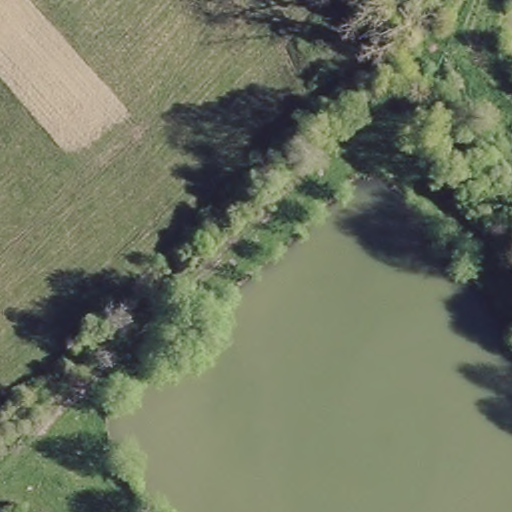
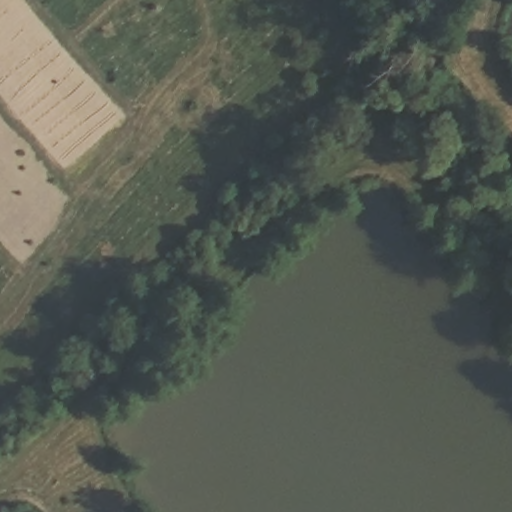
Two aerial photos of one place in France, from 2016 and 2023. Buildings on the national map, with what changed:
[]

